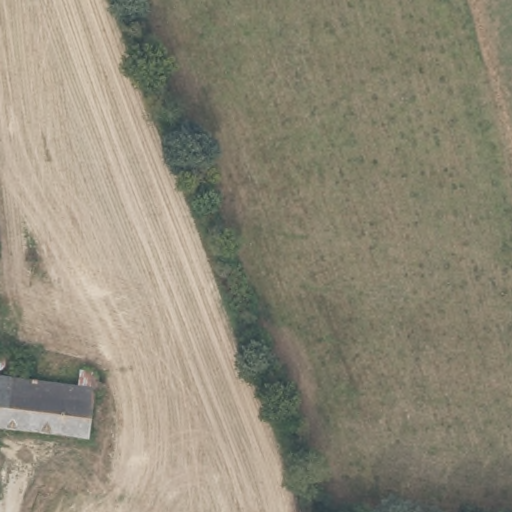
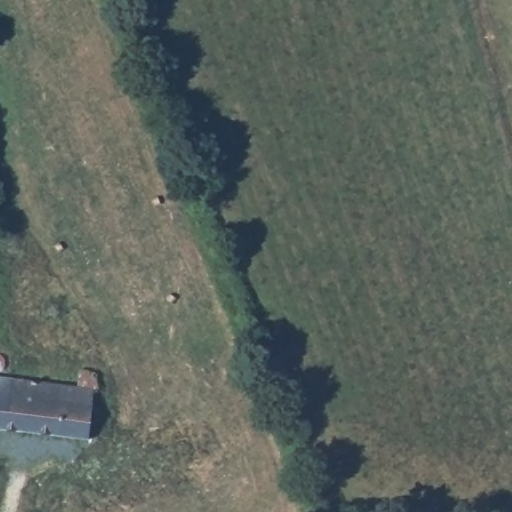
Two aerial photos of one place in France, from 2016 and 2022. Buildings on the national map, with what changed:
unchanged [(83,444),(0,434),(0,385),(47,390),(90,394),(83,444)]

